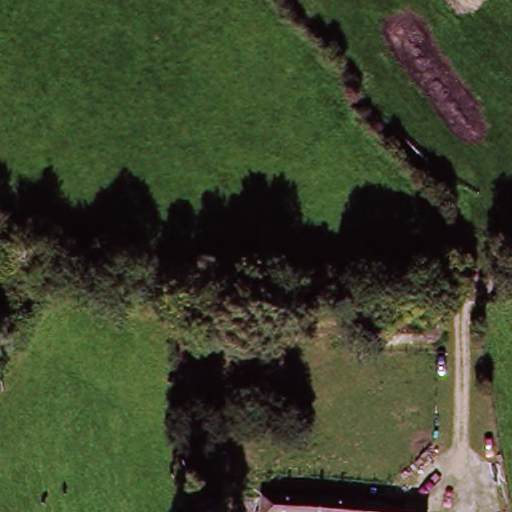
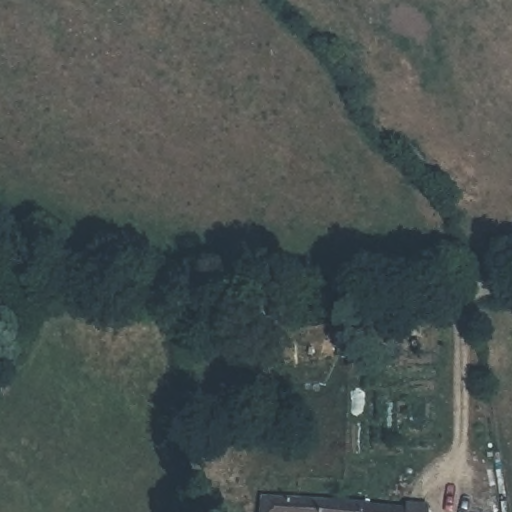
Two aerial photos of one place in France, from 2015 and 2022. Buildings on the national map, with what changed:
unchanged [(341,503),(341,512),(323,512),(323,503),(341,503)]
unchanged [(312,512),(259,512),(259,510),(312,512)]

